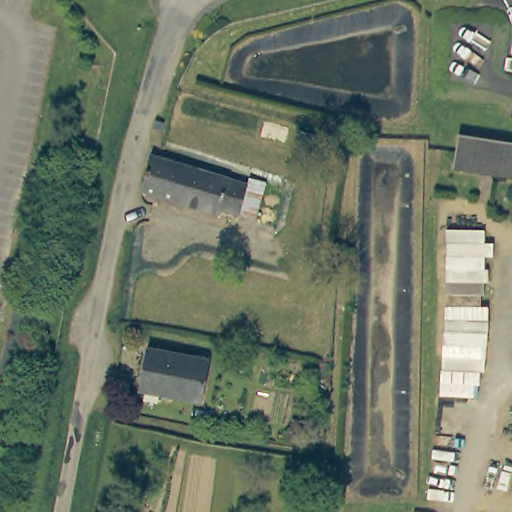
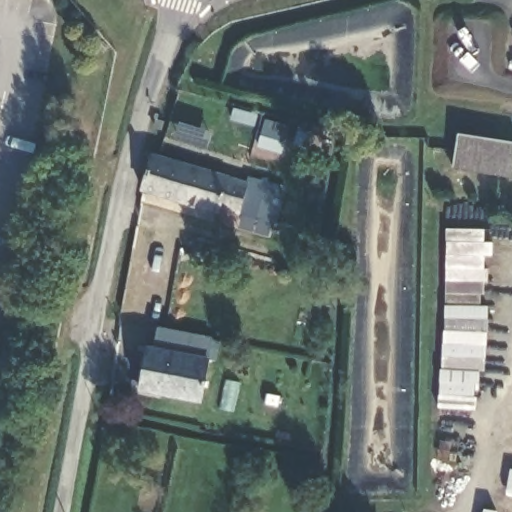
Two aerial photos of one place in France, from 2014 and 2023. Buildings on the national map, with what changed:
unchanged [(512,170),(452,160),(457,126),(512,135),(512,167),(512,170)]
unchanged [(149,186),(157,154),(160,153),(210,170),(202,205),(149,186)]
unchanged [(253,185),(247,213),(227,208),(225,212),(202,205),(210,170),(253,185)]
unchanged [(203,395),(141,386),(146,343),(210,353),(203,395)]

